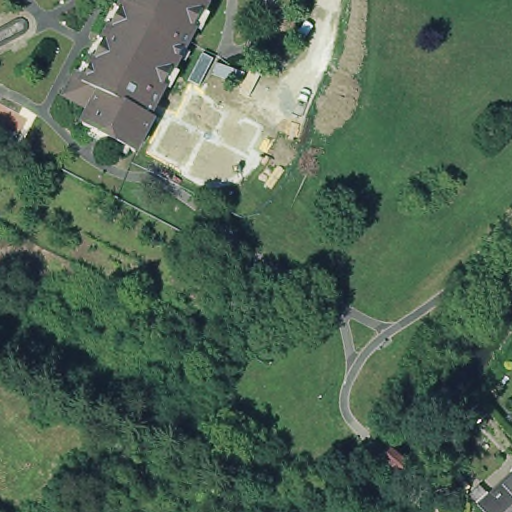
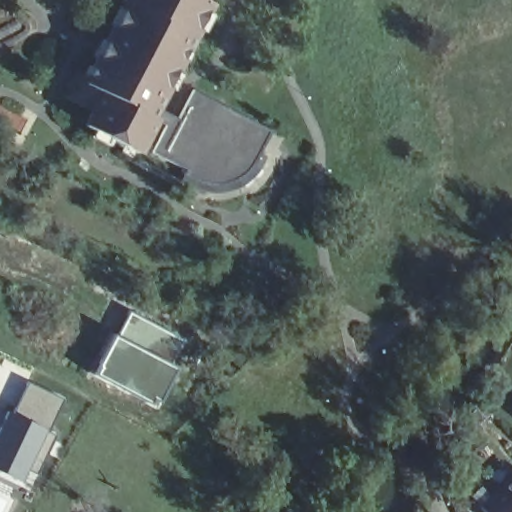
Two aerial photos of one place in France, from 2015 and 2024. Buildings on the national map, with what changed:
unchanged [(177,67),(131,43),(110,32),(128,0),(212,0),(177,67)]
unchanged [(131,43),(177,67),(154,111),(159,114),(152,125),(74,82),(82,66),(90,70),(110,32),(131,43)]
unchanged [(152,125),(140,147),(87,120),(96,103),(70,89),(74,82),(152,125)]
new [(129,310),(188,341),(177,367),(114,335),(129,310)]
new [(114,335),(177,367),(154,407),(91,373),(114,335)]
new [(65,401),(47,433),(55,438),(38,477),(30,473),(22,486),(0,474),(0,433),(27,382),(65,401)]
unchanged [(512,406),(512,410),(510,408),(512,406)]
unchanged [(478,495),(483,501),(493,492),(490,489),(503,476),(507,480),(512,475),(512,512),(490,512),(476,497),(478,495)]

